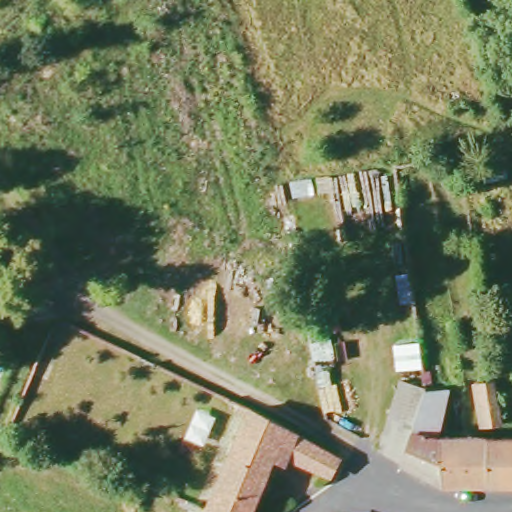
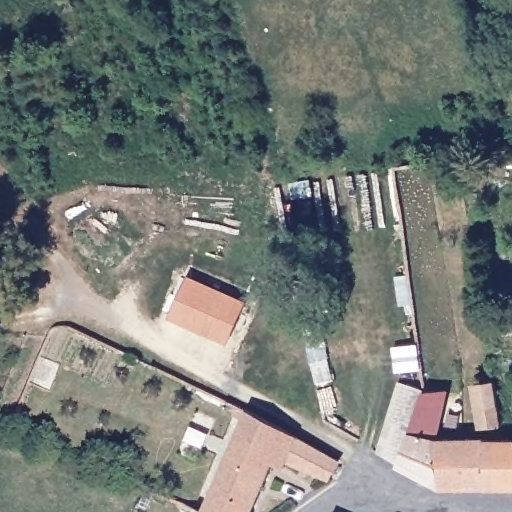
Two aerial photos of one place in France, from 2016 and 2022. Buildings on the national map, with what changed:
new [(248,302),(231,344),(168,317),(190,276),(248,302)]
unchanged [(500,426),(488,427),(480,427),(475,384),(494,382),(500,426)]
unchanged [(406,383),(431,392),(402,465),(380,453),(406,383)]
unchanged [(431,392),(452,392),(444,433),(441,441),(443,441),(442,487),(402,465),(431,392)]
unchanged [(336,460),(328,477),(289,462),(286,468),(274,463),(252,512),(205,512),(204,512),(243,419),(234,416),(238,406),(289,431),(336,460)]
unchanged [(443,441),(492,441),(491,487),(442,487),(443,441)]
unchanged [(492,441),(512,441),(512,486),(491,487),(492,441)]

